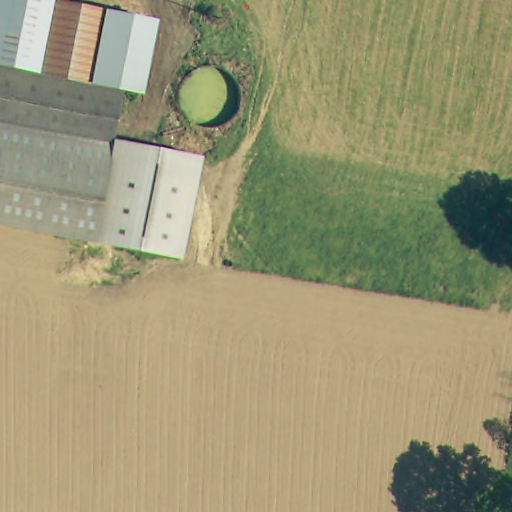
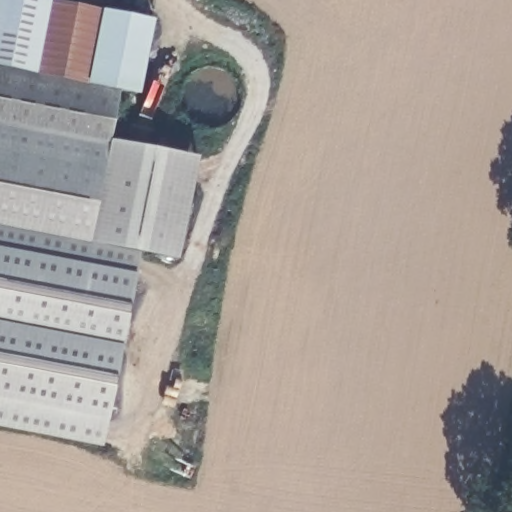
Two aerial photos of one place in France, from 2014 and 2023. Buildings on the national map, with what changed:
unchanged [(0,0),(59,0),(156,19),(142,93),(121,89),(112,140),(200,157),(180,260),(0,225),(0,0)]
new [(0,428),(0,225),(141,252),(101,448),(0,428)]

